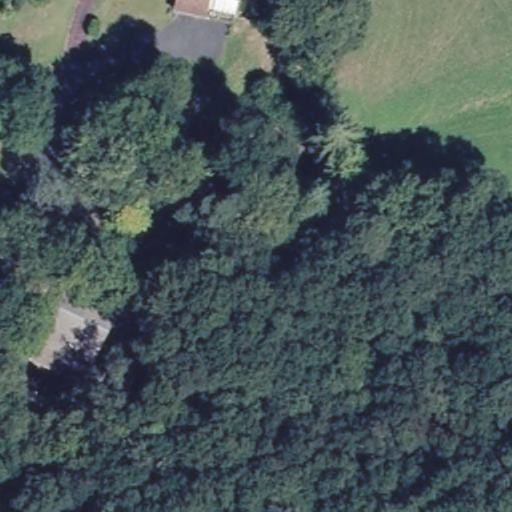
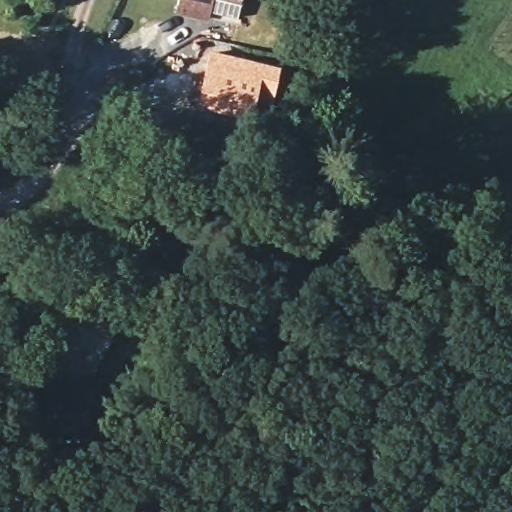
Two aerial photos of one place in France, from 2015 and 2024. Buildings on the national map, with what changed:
unchanged [(177,5),(178,0),(241,0),(236,20),(177,5)]
new [(209,47),(280,65),(270,110),(263,109),(260,120),(195,104),(209,47)]
unchanged [(82,387),(34,362),(72,288),(120,314),(82,387)]

